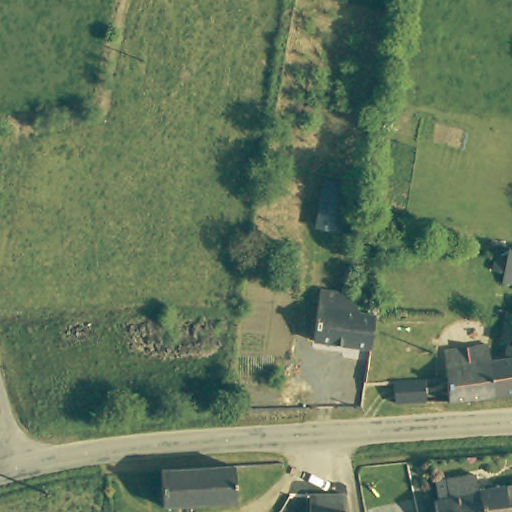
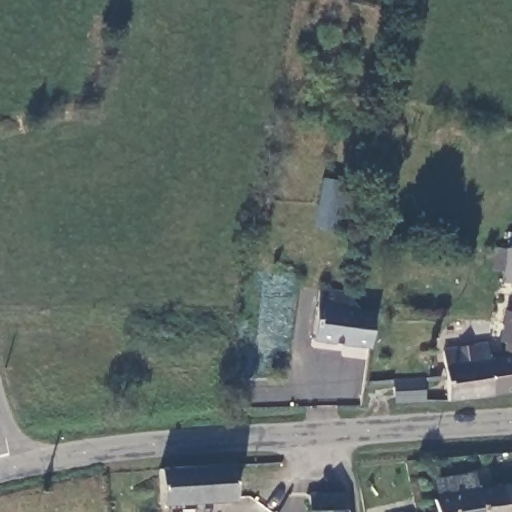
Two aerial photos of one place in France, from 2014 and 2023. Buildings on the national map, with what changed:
unchanged [(508,285),(496,283),(498,267),(497,266),(495,266),(493,265),(491,264),(490,263),(490,262),(489,261),(489,259),(489,258),(490,257),(491,255),(493,254),(496,254),(500,254),(500,251),(512,253),(512,275),(510,274),(508,285)]
unchanged [(345,296),(353,316),(366,318),(363,351),(305,341),(315,291),(345,296)]
unchanged [(511,314),(512,315),(512,394),(495,395),(492,360),(508,359),(511,345),(506,344),(511,314)]
unchanged [(490,345),(492,360),(495,395),(455,399),(449,349),(490,345)]
unchanged [(429,402),(399,404),(397,385),(427,382),(429,402)]
unchanged [(230,464),(230,501),(159,505),(160,473),(160,468),(230,464)]
unchanged [(450,496),(447,477),(470,474),(472,488),(499,486),(502,512),(429,512),(428,499),(450,496)]
unchanged [(502,512),(499,486),(512,485),(512,512),(502,512)]
unchanged [(344,512),(307,512),(305,497),(342,493),(344,512)]

